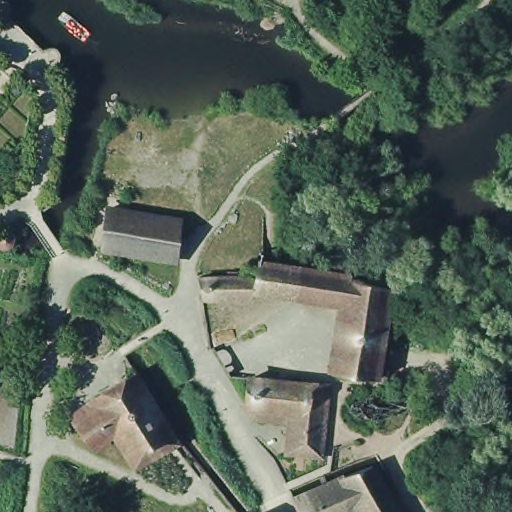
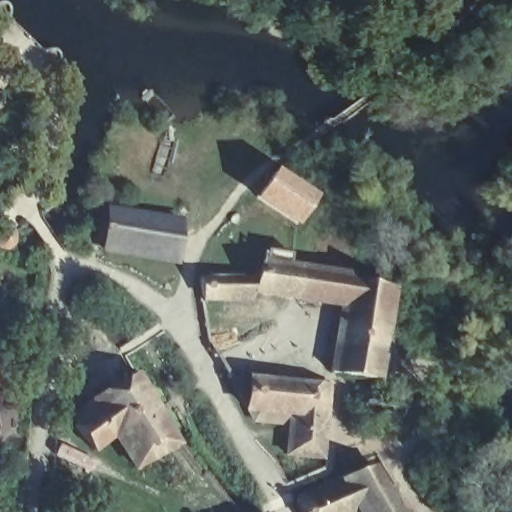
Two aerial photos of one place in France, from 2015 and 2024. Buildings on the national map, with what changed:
unchanged [(0,8),(4,8),(7,25),(0,27),(0,8)]
new [(322,189),(305,228),(256,197),(275,164),(322,189)]
unchanged [(175,224),(170,264),(96,254),(102,215),(175,224)]
unchanged [(15,239),(5,246),(0,244),(0,232),(12,228),(15,239)]
unchanged [(259,279),(264,264),(349,277),(347,284),(345,304),(256,291),(259,279)]
unchanged [(255,299),(205,299),(205,279),(259,279),(256,291),(255,299)]
unchanged [(396,290),(382,382),(334,375),(345,304),(347,284),(396,290)]
unchanged [(137,467),(114,437),(92,451),(75,426),(97,407),(94,396),(140,374),(181,444),(137,467)]
unchanged [(326,383),(320,455),(285,451),(288,421),(255,418),(247,407),(252,376),(326,383)]
unchanged [(358,394),(410,397),(405,432),(357,425),(358,394)]
unchanged [(375,469),(401,512),(363,512),(347,482),(375,469)]
unchanged [(300,503),(347,482),(363,512),(304,512),(300,503)]

